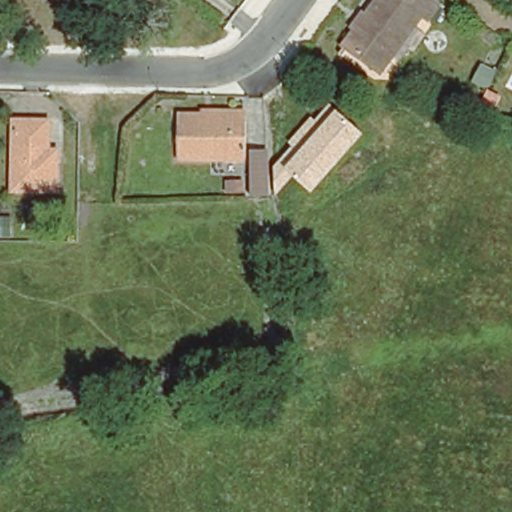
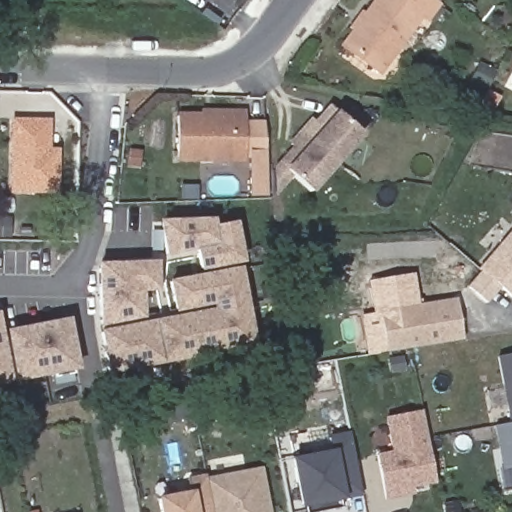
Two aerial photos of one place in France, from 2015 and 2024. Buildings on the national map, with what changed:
unchanged [(344,46),(354,30),(351,27),(362,11),(366,14),(376,0),(431,0),(439,5),(428,21),(421,16),(403,39),(379,72),(344,46)]
unchanged [(500,96),(493,111),(481,105),(480,105),(488,90),(500,96)]
unchanged [(312,193),(294,177),(277,195),(274,166),(293,146),(289,142),(311,118),(315,121),(329,105),(336,111),(363,133),(312,193)]
unchanged [(241,115),(241,157),(173,157),(174,113),(241,115)]
unchanged [(7,188),(8,120),(41,120),(41,151),(50,151),(50,157),(49,188),(7,188)]
unchanged [(228,182),(242,182),(242,192),(228,192),(228,182)]
unchanged [(250,187),(266,187),(266,198),(262,198),(250,198),(250,187)]
new [(172,221),(221,218),(223,227),(243,223),(249,261),(208,268),(204,248),(174,253),(171,236),(172,221)]
new [(512,230),(512,298),(478,267),(512,230)]
new [(106,262),(163,262),(162,287),(146,287),(146,314),(106,321),(106,262)]
new [(219,310),(219,302),(180,309),(177,282),(245,270),(250,304),(249,305),(253,329),(251,329),(254,346),(114,370),(106,329),(219,310)]
new [(456,300),(463,340),(387,351),(379,311),(456,300)]
new [(17,379),(0,382),(0,314),(6,312),(17,379)]
new [(84,367),(24,378),(18,338),(16,329),(52,323),(76,319),(84,367)]
new [(512,355),(512,466),(502,468),(493,426),(509,422),(499,357),(512,355)]
new [(422,409),(436,483),(413,487),(414,492),(384,498),(376,453),(391,451),(384,417),(422,409)]
new [(303,505),(294,459),(333,452),(329,437),(351,432),(363,493),(303,505)]
new [(259,472),(267,512),(213,512),(208,481),(259,472)]
new [(189,493),(187,480),(207,476),(208,481),(213,512),(161,512),(159,498),(189,493)]

